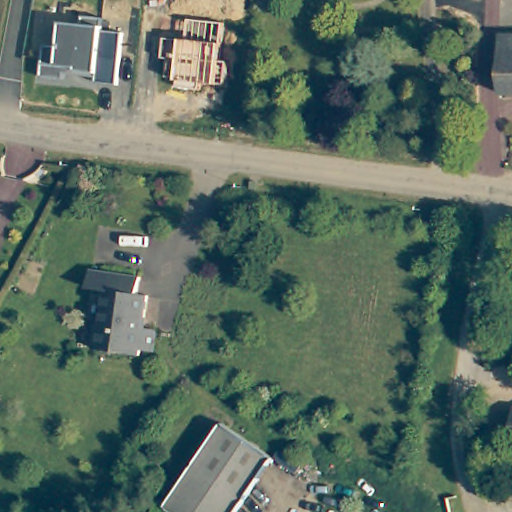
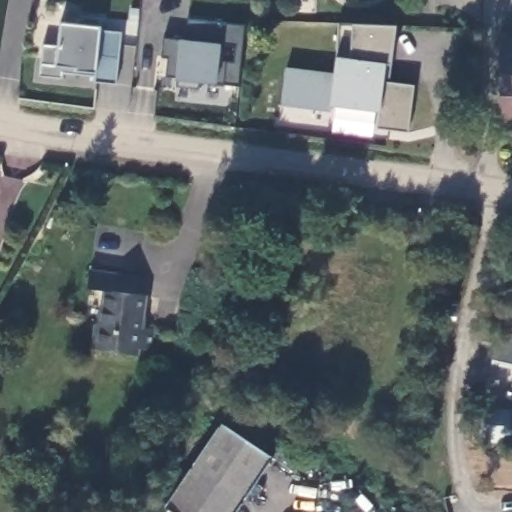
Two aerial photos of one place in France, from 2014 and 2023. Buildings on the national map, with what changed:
unchanged [(81,26),(82,16),(102,18),(101,28),(101,31),(120,34),(116,84),(94,82),(95,73),(78,71),(63,70),(63,79),(40,78),(43,44),(58,44),(60,23),(81,26)]
unchanged [(224,24),(222,44),(219,60),(227,61),(224,85),(215,85),(201,84),(199,89),(177,87),(178,80),(178,77),(166,76),(169,59),(161,58),(164,39),(179,40),(187,41),(189,19),(224,24)]
new [(377,128),(379,111),(333,106),(331,111),(283,105),(286,69),(334,72),(336,57),(340,57),(339,25),(353,24),(397,25),(392,65),(389,82),(414,85),(409,132),(377,128)]
unchanged [(512,37),(512,96),(499,97),(499,38),(512,37)]
unchanged [(130,274),(128,290),(138,291),(133,324),(145,326),(142,347),(131,345),(130,351),(83,344),(86,320),(90,321),(95,287),(78,285),(81,266),(130,274)]
unchanged [(233,424),(284,459),(247,512),(181,512),(175,508),(233,424)]

